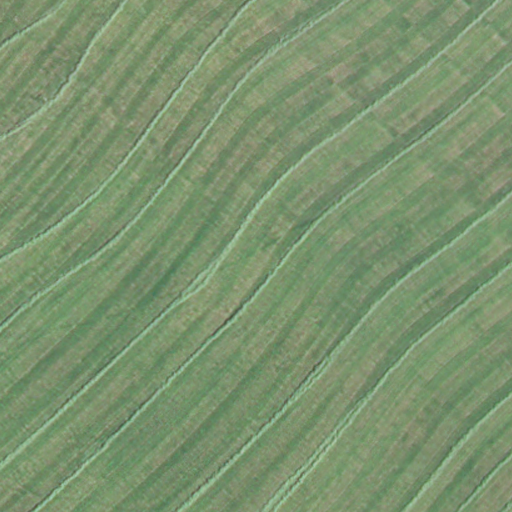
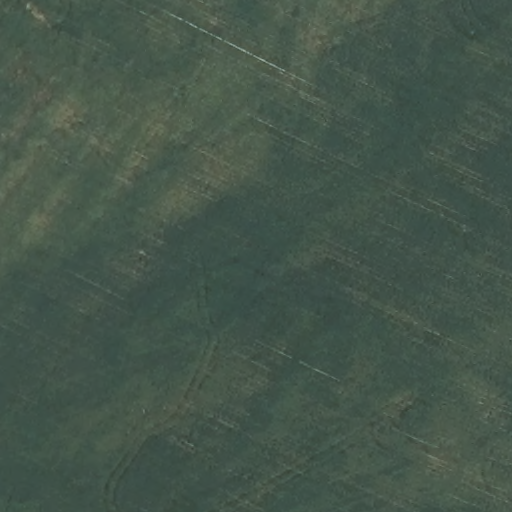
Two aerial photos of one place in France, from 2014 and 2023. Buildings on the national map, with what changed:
[]

